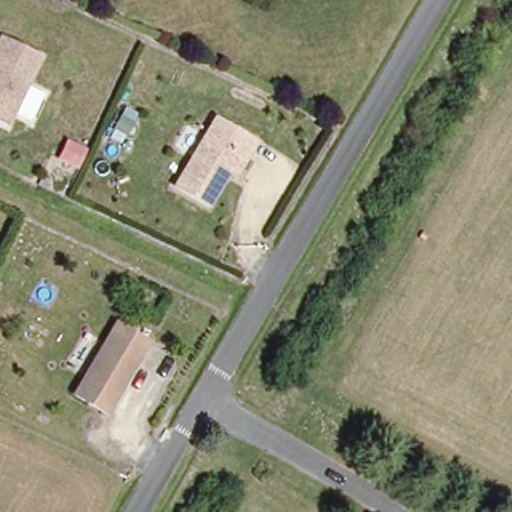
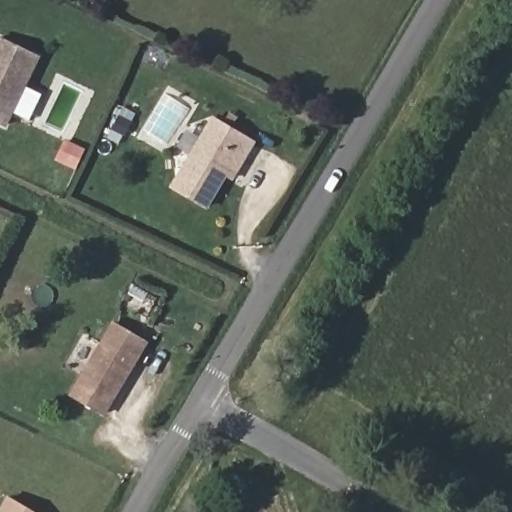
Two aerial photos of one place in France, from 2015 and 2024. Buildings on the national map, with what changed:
unchanged [(35,57),(11,107),(3,125),(0,123),(0,41),(35,57)]
unchanged [(170,187),(211,116),(252,140),(243,155),(237,151),(205,208),(170,187)]
unchanged [(105,412),(71,393),(112,321),(146,340),(105,412)]
new [(7,496),(34,512),(0,512),(0,508),(7,496)]

